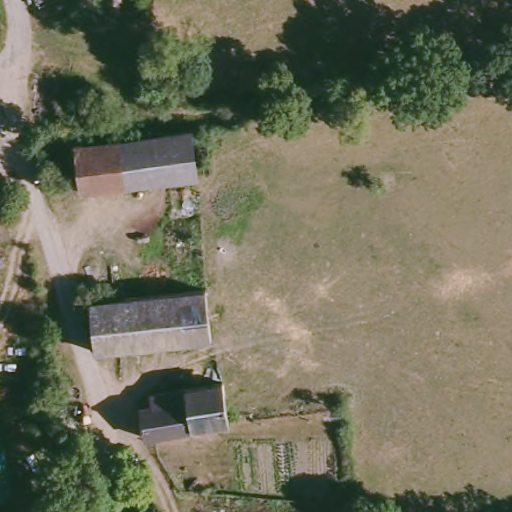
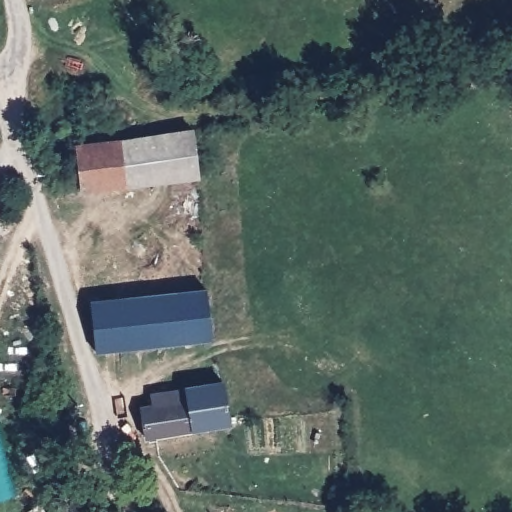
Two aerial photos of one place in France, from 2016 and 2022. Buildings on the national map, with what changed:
unchanged [(198,179),(125,186),(121,139),(189,132),(213,126),(215,146),(197,149),(198,178),(198,179)]
unchanged [(125,186),(81,191),(77,144),(121,139),(125,186)]
unchanged [(5,219),(0,223),(0,209),(6,219),(5,219)]
unchanged [(215,338),(99,351),(94,301),(209,288),(215,338)]
unchanged [(146,442),(142,411),(154,410),(154,398),(223,386),(223,387),(230,425),(146,442)]

